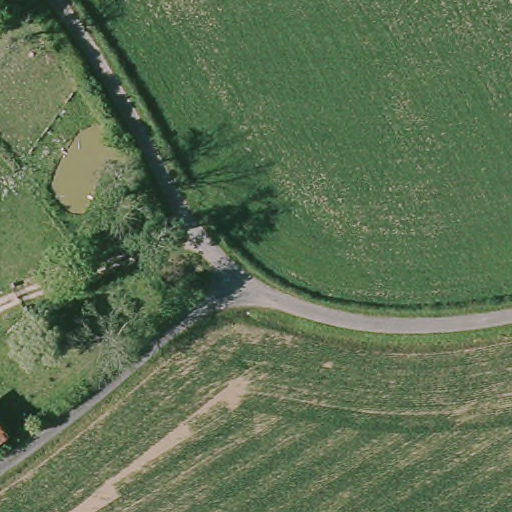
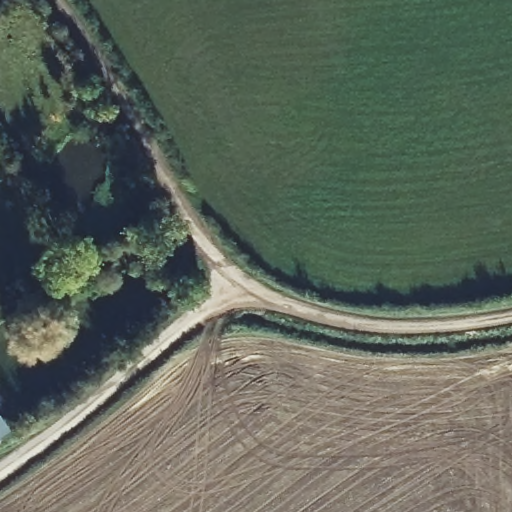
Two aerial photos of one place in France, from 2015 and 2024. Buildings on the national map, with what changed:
unchanged [(0,431),(0,426),(2,429),(0,431)]

